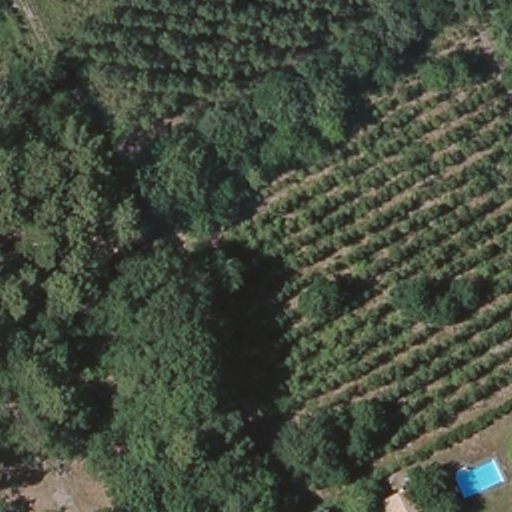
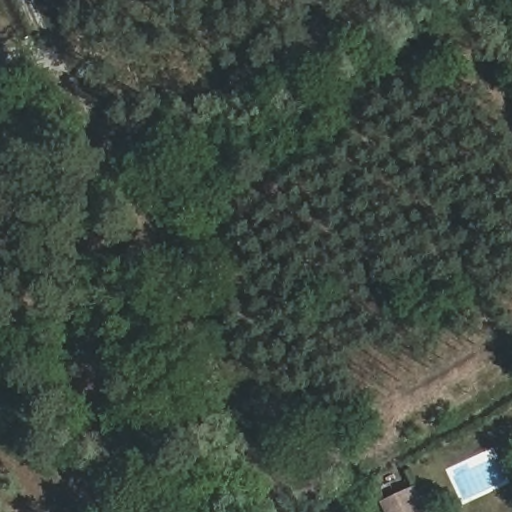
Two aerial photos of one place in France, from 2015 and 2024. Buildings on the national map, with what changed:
unchanged [(384,502),(407,491),(415,509),(409,512),(389,512),(384,502)]

